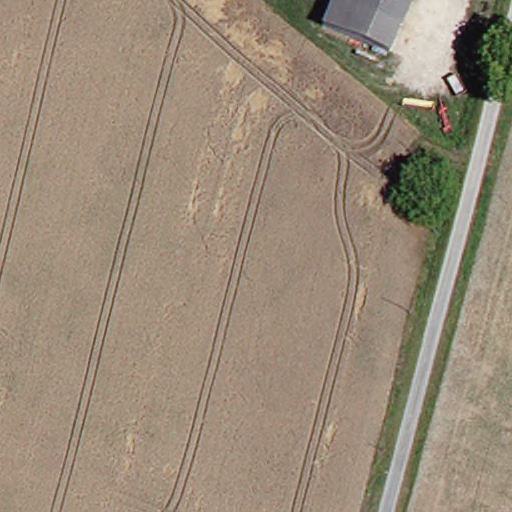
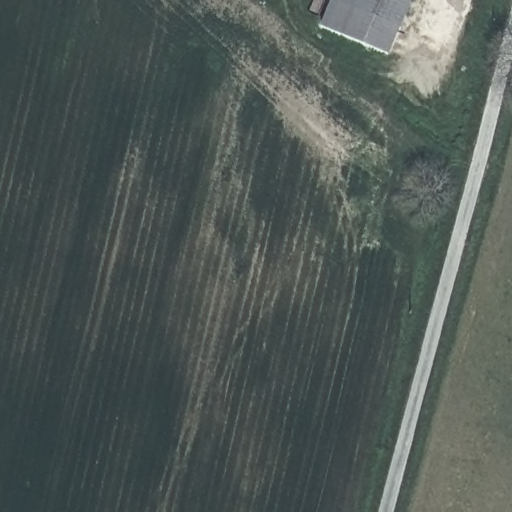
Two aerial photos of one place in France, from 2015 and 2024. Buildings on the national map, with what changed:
unchanged [(327,0),(405,0),(382,56),(314,31),(327,0)]

